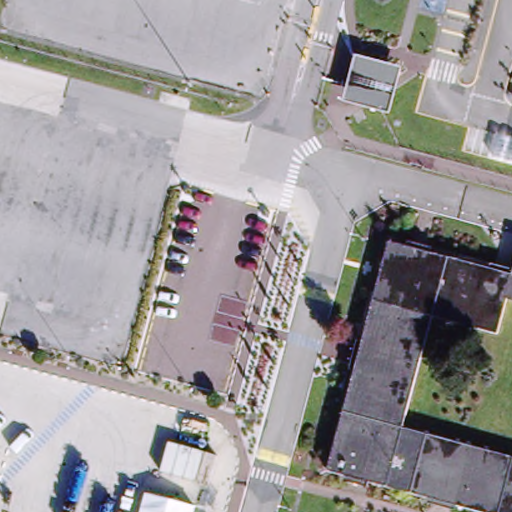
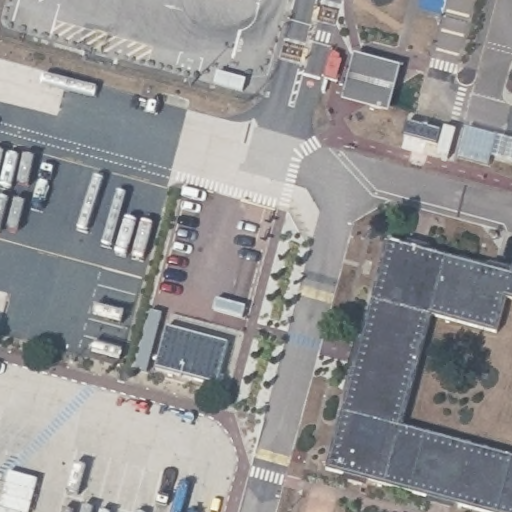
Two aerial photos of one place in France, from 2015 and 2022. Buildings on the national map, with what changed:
unchanged [(399,63),(389,104),(346,94),(356,52),(399,63)]
unchanged [(512,254),(512,299),(501,296),(492,332),(429,315),(401,424),(512,452),(512,512),(497,512),(328,468),(386,241),(508,272),(512,254)]
new [(167,323),(227,338),(218,378),(158,365),(167,323)]

